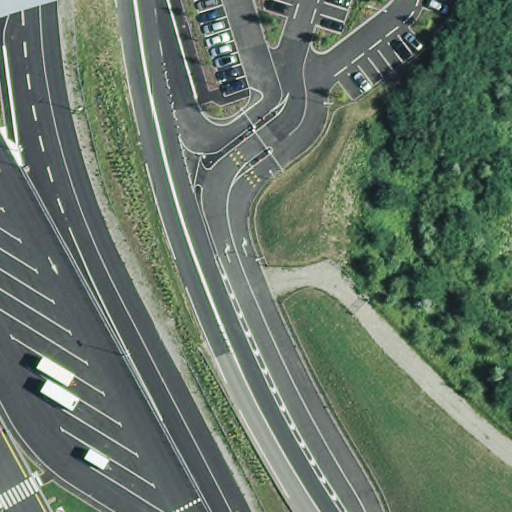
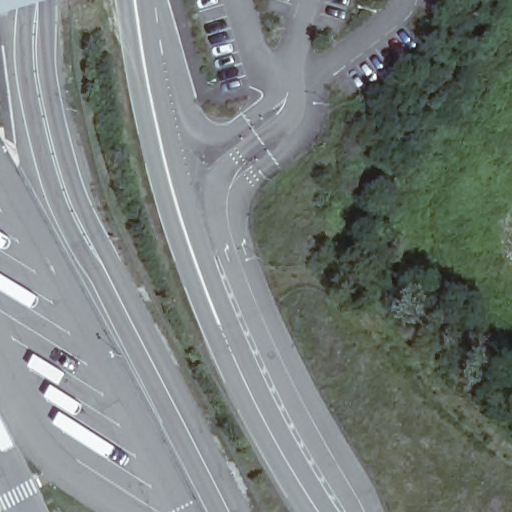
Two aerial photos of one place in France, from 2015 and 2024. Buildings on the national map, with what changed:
unchanged [(0,0),(62,0),(0,18),(0,0)]

